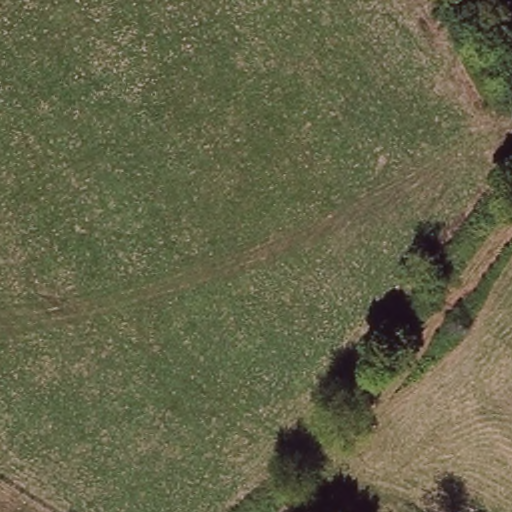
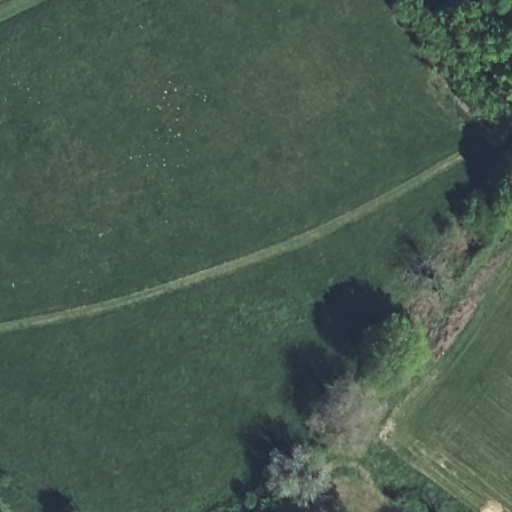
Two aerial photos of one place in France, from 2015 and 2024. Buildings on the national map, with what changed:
[]

